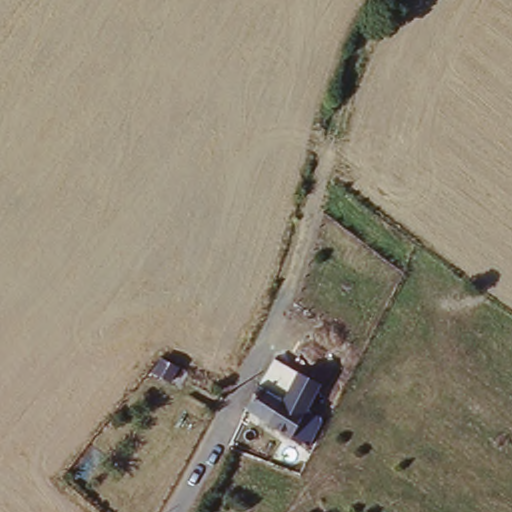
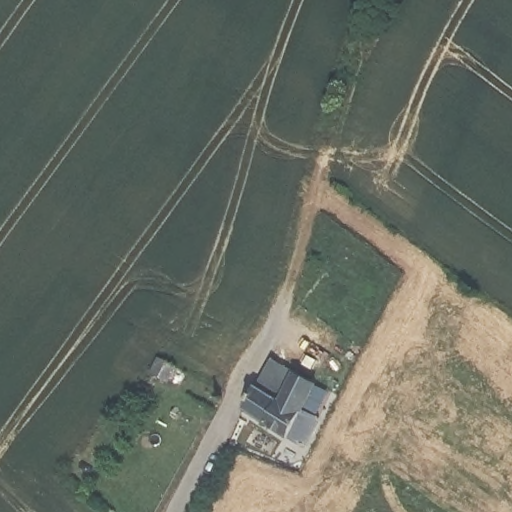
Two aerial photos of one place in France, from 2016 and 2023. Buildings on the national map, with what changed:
unchanged [(302,438),(282,428),(274,443),(267,438),(275,422),(255,412),(265,365),(321,396),(302,438)]

